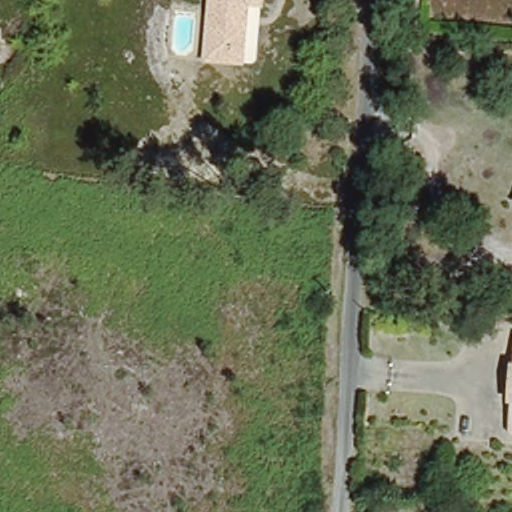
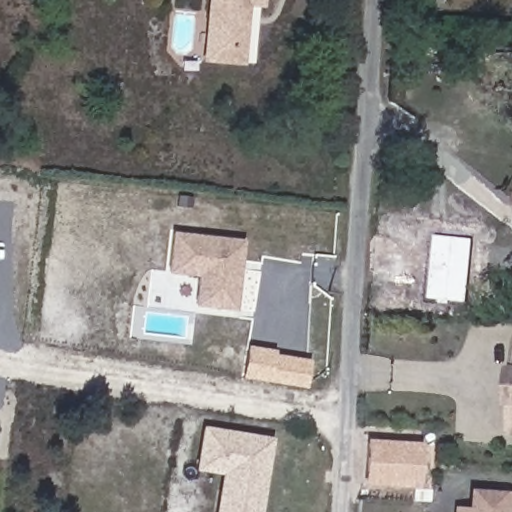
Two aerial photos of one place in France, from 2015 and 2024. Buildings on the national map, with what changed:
unchanged [(206,46),(211,0),(260,0),(259,8),(246,7),(240,49),(238,64),(204,62),(206,46)]
new [(196,306),(199,278),(169,274),(174,231),(242,239),(242,243),(235,303),(234,310),(196,306)]
new [(471,300),(431,297),(436,234),(476,237),(471,300)]
unchanged [(509,396),(510,382),(511,364),(512,365),(512,396),(509,396)]
unchanged [(510,428),(512,409),(512,428),(510,428)]
new [(221,475),(198,472),(204,426),(273,437),(262,512),(215,512),(221,475)]
new [(418,488),(363,485),(367,438),(422,442),(418,488)]
new [(454,506),(468,507),(470,489),(512,491),(512,512),(454,512),(454,506)]

